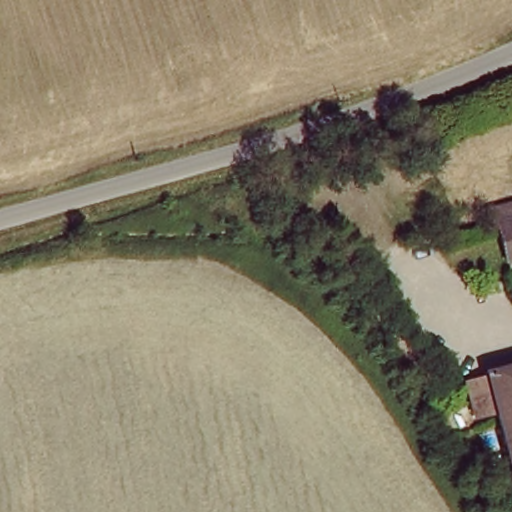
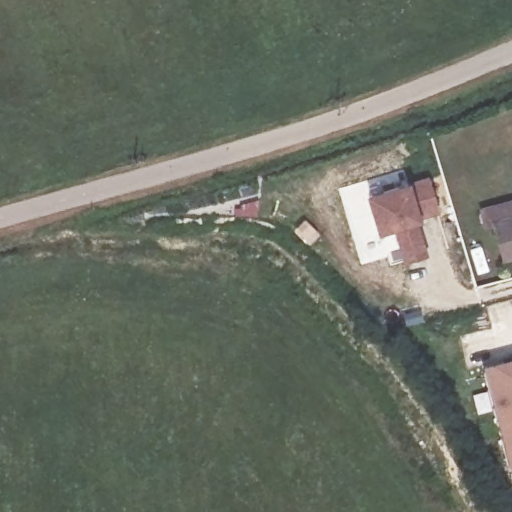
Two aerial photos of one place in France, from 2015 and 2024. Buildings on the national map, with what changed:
new [(404,264),(392,230),(380,234),(368,195),(410,182),(428,176),(440,213),(422,216),(423,221),(418,224),(429,255),(404,264)]
unchanged [(497,239),(495,229),(485,231),(481,214),(491,212),(512,207),(512,262),(504,264),(497,239)]
unchanged [(480,376),(512,368),(512,471),(507,472),(492,415),(474,420),(463,385),(482,380),(480,376)]

